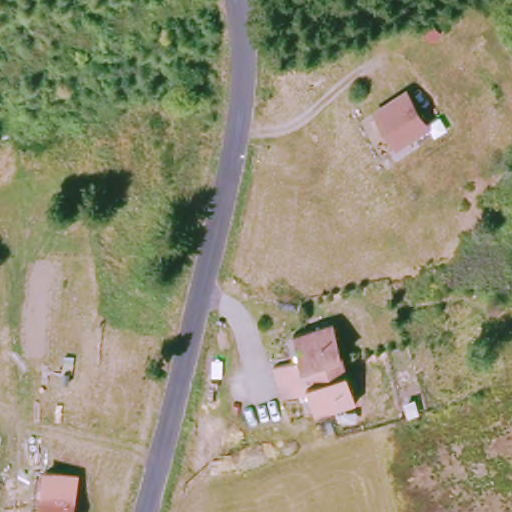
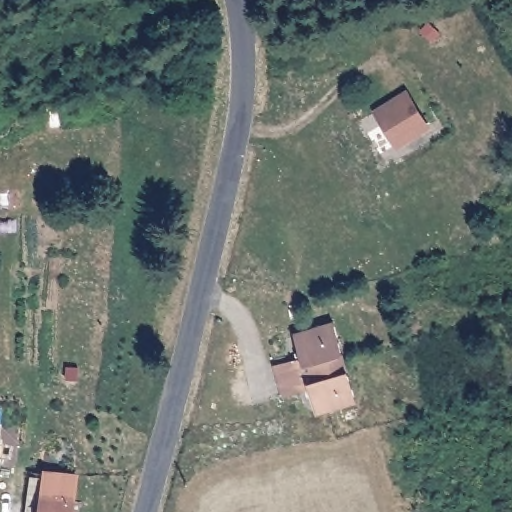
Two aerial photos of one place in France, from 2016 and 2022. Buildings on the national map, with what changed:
unchanged [(406,92),(431,131),(396,153),(371,113),(406,92)]
unchanged [(294,360),(289,335),(329,325),(350,405),(309,415),(301,391),(275,397),(267,366),(294,360)]
unchanged [(41,499),(45,473),(81,476),(77,501),(76,512),(24,512),(26,497),(41,499)]

